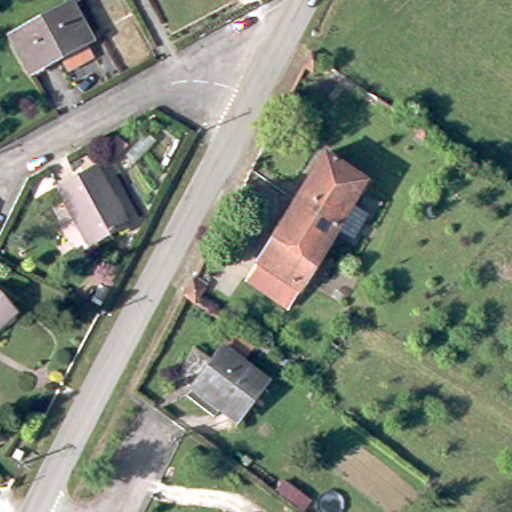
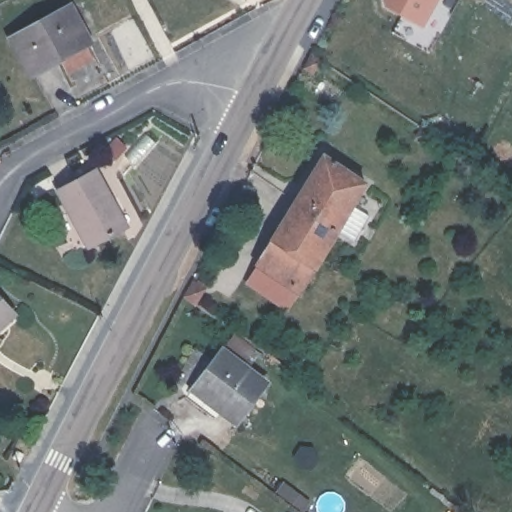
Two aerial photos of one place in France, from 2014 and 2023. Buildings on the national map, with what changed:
new [(383,5),(382,0),(437,0),(423,25),(383,5)]
unchanged [(93,37),(34,69),(16,32),(77,3),(93,37)]
unchanged [(327,62),(320,75),(306,68),(314,53),(327,62)]
unchanged [(430,146),(419,140),(426,128),(437,135),(430,146)]
unchanged [(258,264),(325,160),(367,186),(355,207),(370,218),(355,242),(338,233),(300,291),(290,306),(247,281),(258,264)]
unchanged [(130,227),(96,244),(68,189),(102,171),(130,227)]
unchanged [(192,281),(207,287),(199,303),(186,293),(192,281)]
unchanged [(0,328),(0,297),(15,313),(0,328)]
unchanged [(270,382),(240,422),(222,408),(217,415),(191,395),(227,349),(270,382)]

